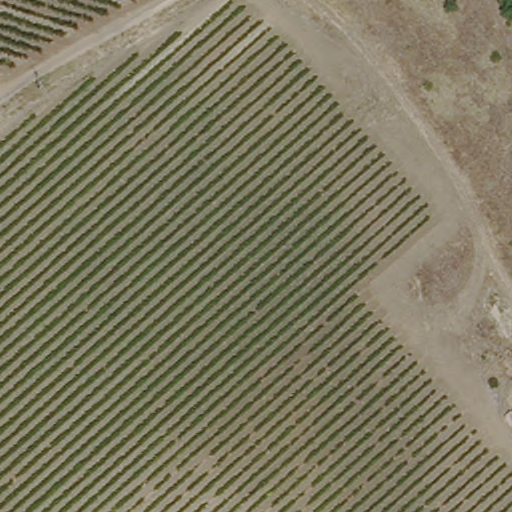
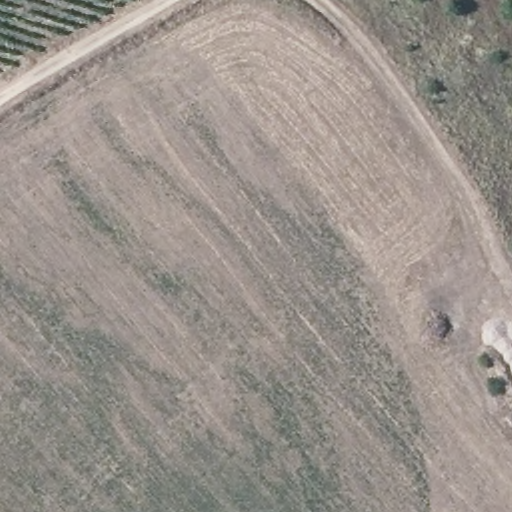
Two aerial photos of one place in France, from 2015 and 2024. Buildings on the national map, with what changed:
unchanged [(508,427),(498,415),(512,406),(512,425),(508,427)]

